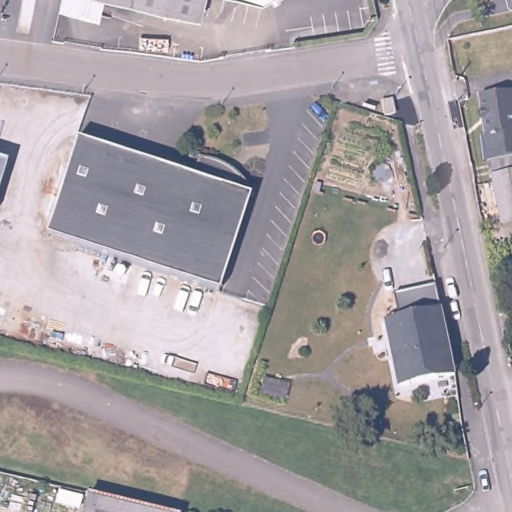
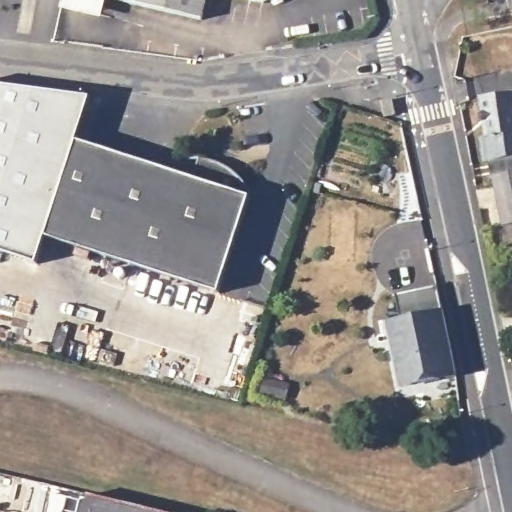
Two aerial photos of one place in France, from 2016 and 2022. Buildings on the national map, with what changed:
unchanged [(115,0),(214,0),(208,24),(115,0)]
unchanged [(244,0),(285,0),(270,7),(244,0)]
new [(0,252),(0,85),(89,97),(75,141),(44,238),(34,263),(0,252)]
unchanged [(500,252),(496,232),(496,230),(506,228),(497,180),(495,180),(483,101),(512,98),(512,250),(500,252)]
unchanged [(383,103),(392,100),(395,115),(386,117),(383,103)]
unchanged [(75,141),(124,157),(192,179),(199,159),(207,159),(216,162),(225,167),(232,174),(239,183),(249,197),(228,264),(218,294),(112,259),(44,238),(75,141)]
unchanged [(395,293),(436,285),(442,312),(400,320),(395,293)]
unchanged [(393,322),(400,320),(442,312),(454,374),(399,386),(387,323),(393,322)]
unchanged [(149,512),(90,512),(93,498),(149,512)]

